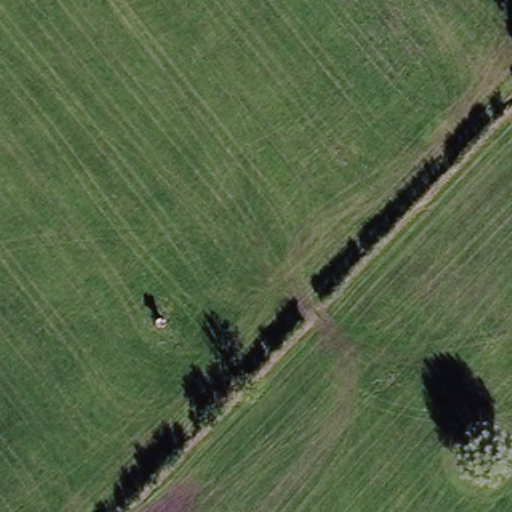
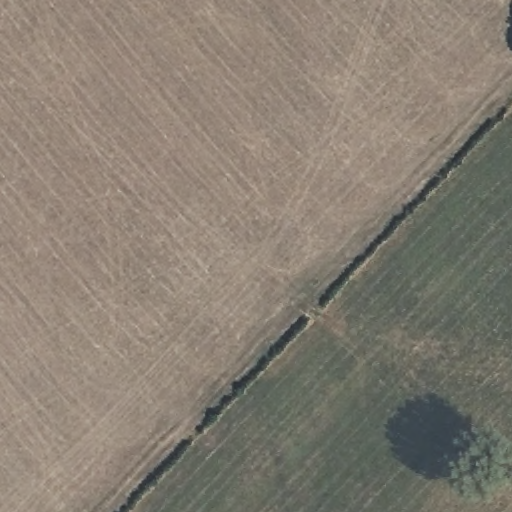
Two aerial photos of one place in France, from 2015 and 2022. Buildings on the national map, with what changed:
[]

